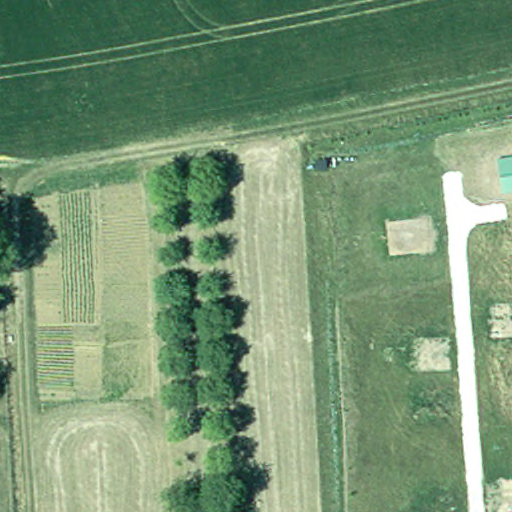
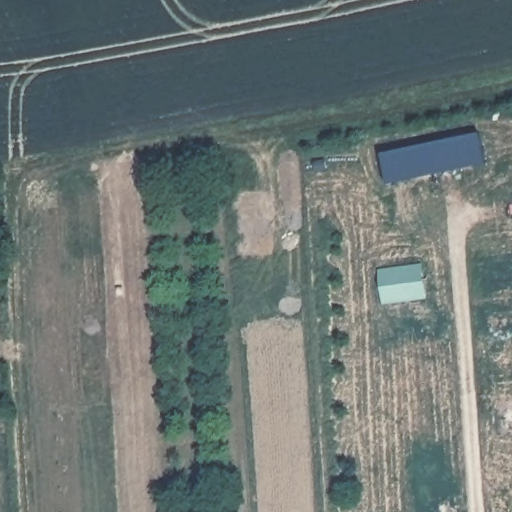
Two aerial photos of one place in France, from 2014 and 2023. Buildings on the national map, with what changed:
new [(388,184),(381,153),(479,132),(485,164),(388,184)]
new [(442,300),(398,298),(399,262),(444,264),(442,300)]

